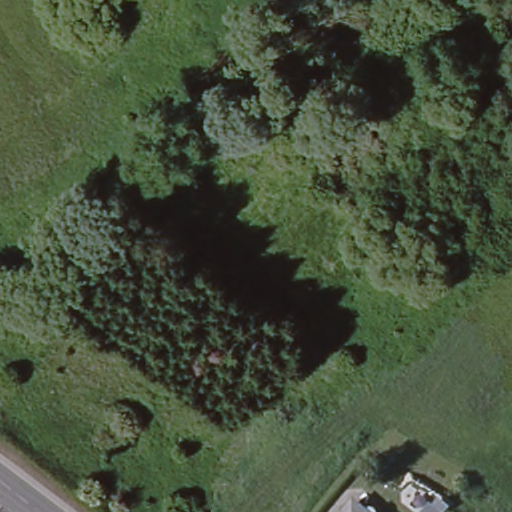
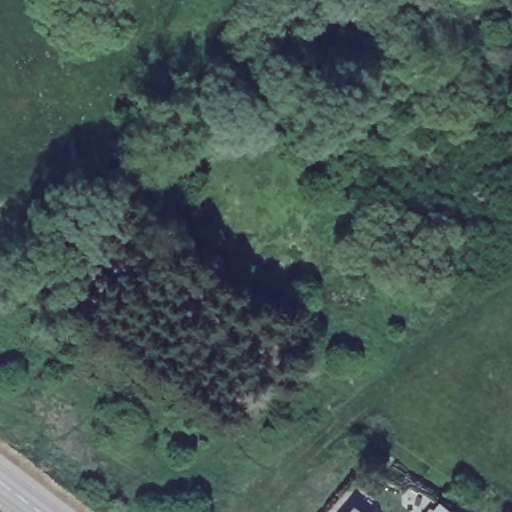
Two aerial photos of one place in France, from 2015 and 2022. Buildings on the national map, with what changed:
unchanged [(367,512),(347,512),(355,502),(367,512)]

